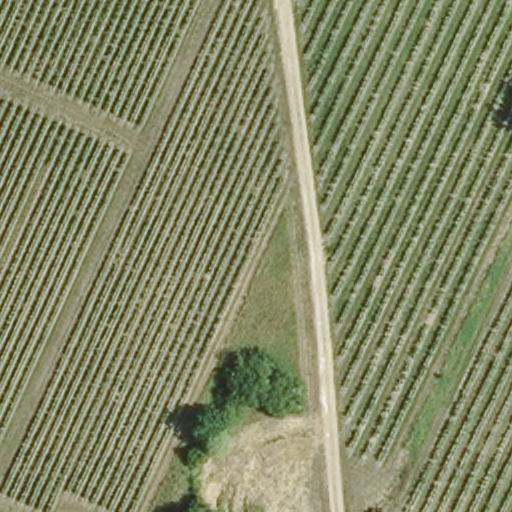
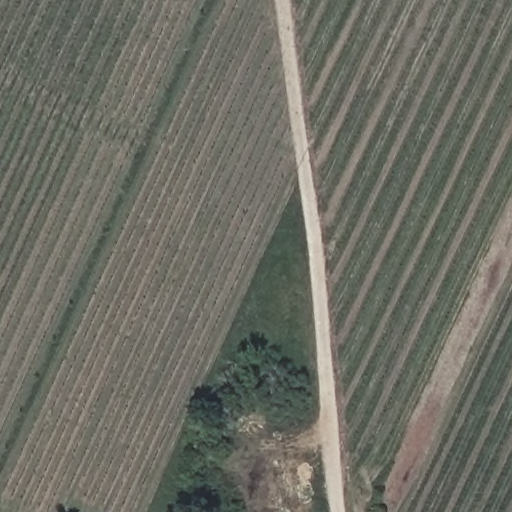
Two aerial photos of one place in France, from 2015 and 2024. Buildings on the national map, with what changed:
unchanged [(398,500),(392,512),(391,512),(380,505),(386,495),(398,500)]

